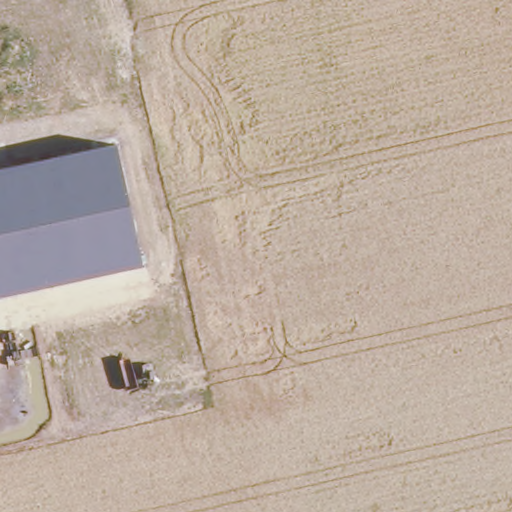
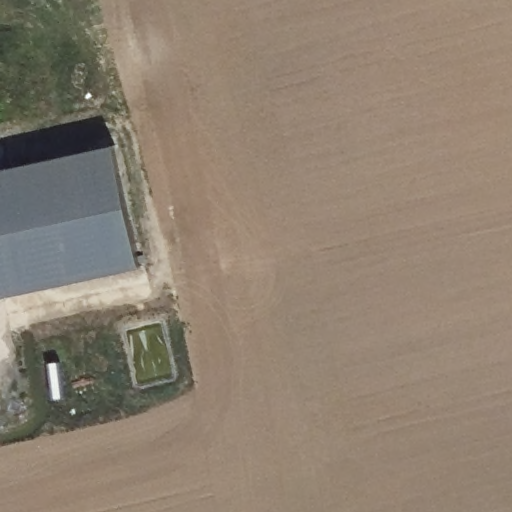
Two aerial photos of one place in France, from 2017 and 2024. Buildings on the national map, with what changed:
unchanged [(112,144),(141,266),(0,296),(0,169),(112,144)]

